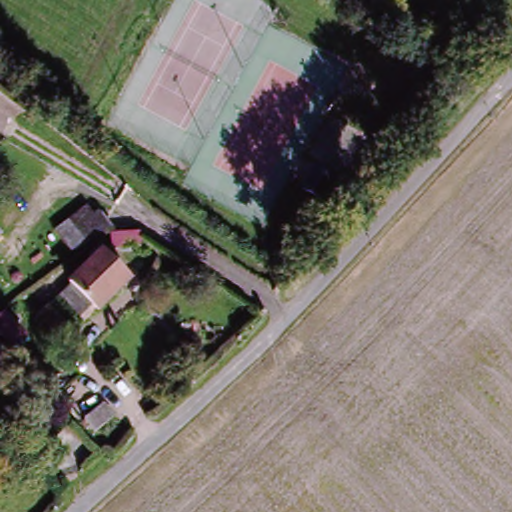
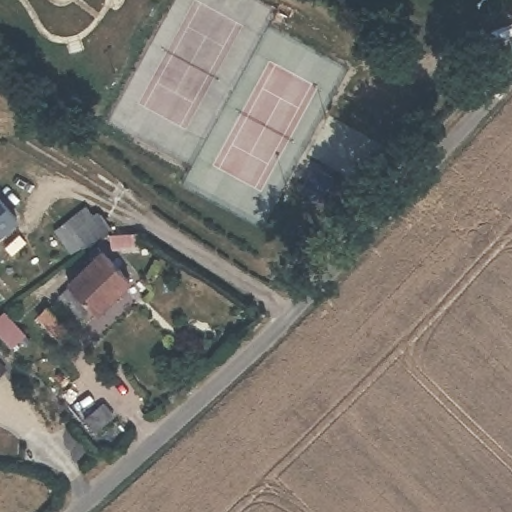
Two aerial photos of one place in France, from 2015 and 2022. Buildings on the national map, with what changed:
unchanged [(308,211),(289,199),(303,176),(323,187),(308,211)]
unchanged [(92,240),(63,262),(46,237),(75,217),(92,240)]
unchanged [(73,297),(105,267),(127,290),(95,321),(73,297)]
unchanged [(0,375),(0,366),(5,371),(0,375)]

